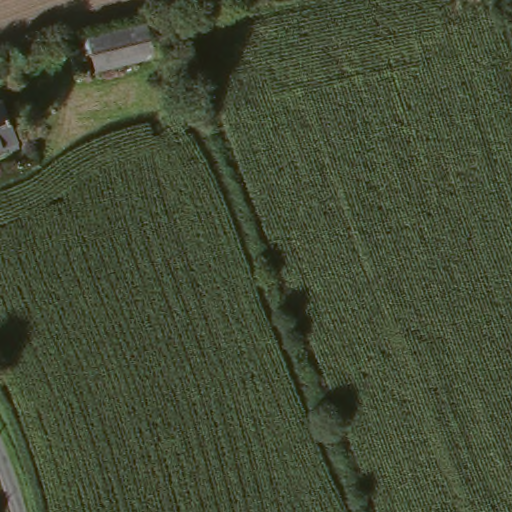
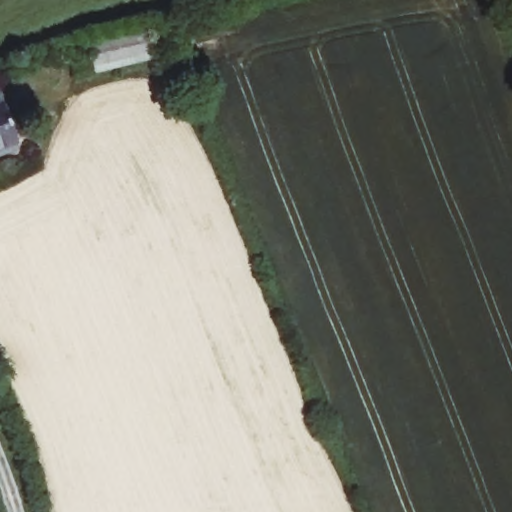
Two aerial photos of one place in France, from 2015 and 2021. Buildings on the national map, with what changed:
unchanged [(149,28),(156,60),(97,74),(92,54),(73,60),(70,47),(89,42),(149,28)]
unchanged [(3,104),(18,142),(0,150),(0,106),(3,104)]

